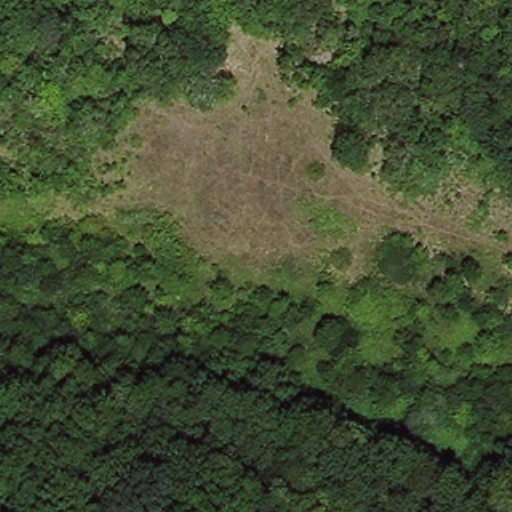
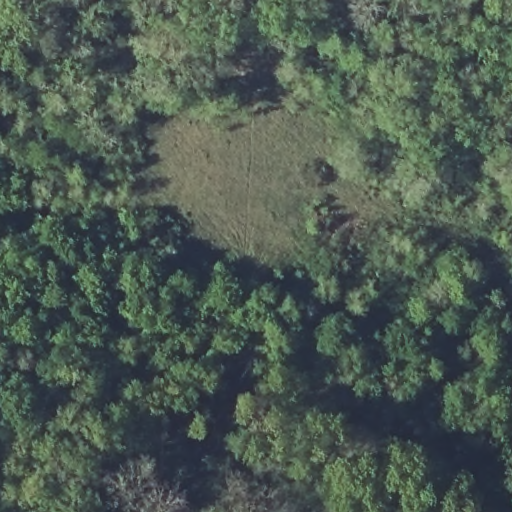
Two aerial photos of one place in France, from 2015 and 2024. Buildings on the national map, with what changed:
[]

